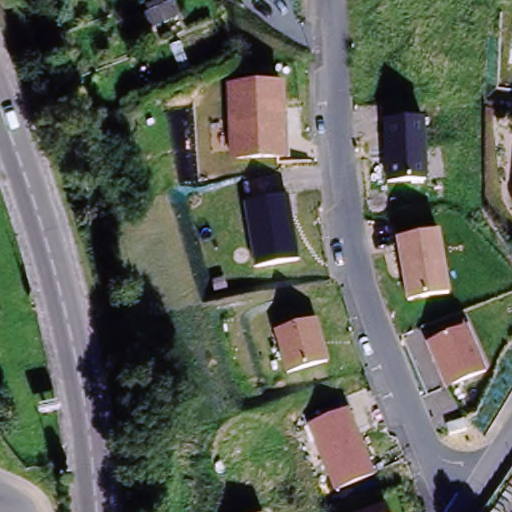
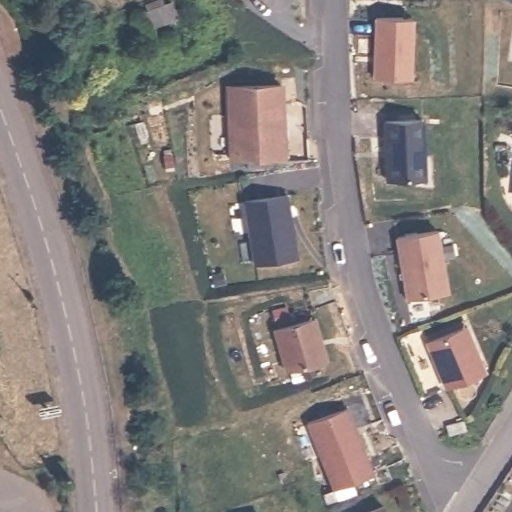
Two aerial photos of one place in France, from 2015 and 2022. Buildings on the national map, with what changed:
unchanged [(172,0),(183,22),(154,34),(142,13),(167,0),(172,0)]
new [(411,15),(413,69),(376,71),(375,16),(411,15)]
unchanged [(285,83),(288,159),(227,162),(222,86),(285,83)]
unchanged [(425,119),(427,184),(383,185),(380,121),(425,119)]
unchanged [(289,194),(298,257),(254,265),(242,200),(289,194)]
unchanged [(442,230),(453,293),(405,302),(393,238),(442,230)]
unchanged [(315,319),(328,366),(284,377),(271,333),(315,319)]
unchanged [(466,327),(487,376),(445,393),(425,345),(466,327)]
unchanged [(352,402),(379,469),(340,484),(313,418),(352,402)]
unchanged [(464,412),(467,422),(450,428),(446,418),(464,412)]
unchanged [(382,504),(386,512),(362,512),(382,504)]

